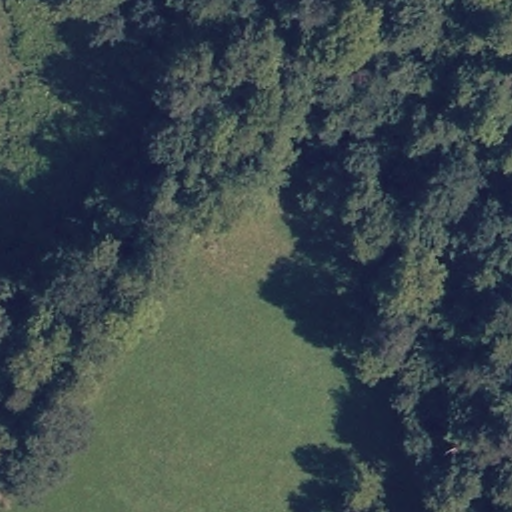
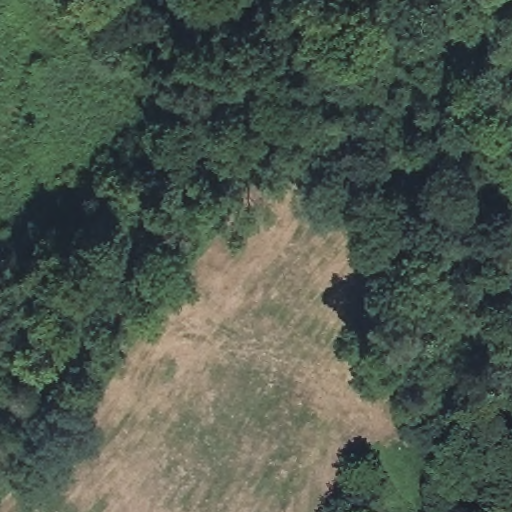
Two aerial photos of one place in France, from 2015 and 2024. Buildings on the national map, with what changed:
[]

